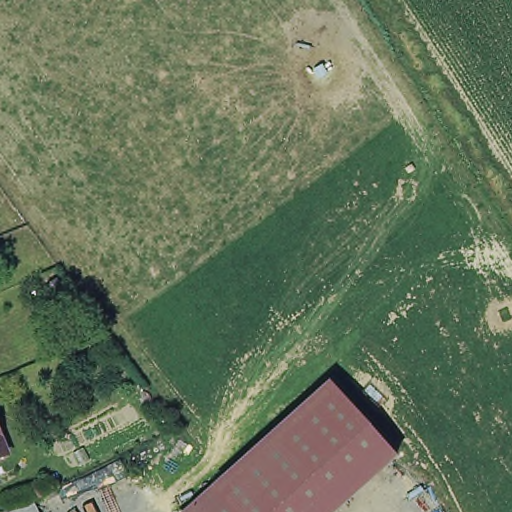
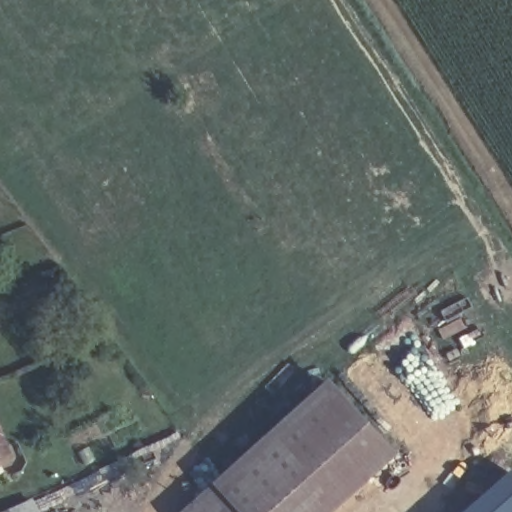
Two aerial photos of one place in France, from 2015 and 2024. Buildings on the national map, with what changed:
unchanged [(328,380),(396,456),(333,512),(184,512),(328,380)]
unchanged [(0,453),(0,430),(8,450),(0,453)]
new [(511,471),(512,472),(512,512),(463,512),(511,471)]
unchanged [(10,511),(34,497),(41,512),(10,512),(10,511)]
unchanged [(8,512),(6,512),(8,511),(8,512)]

